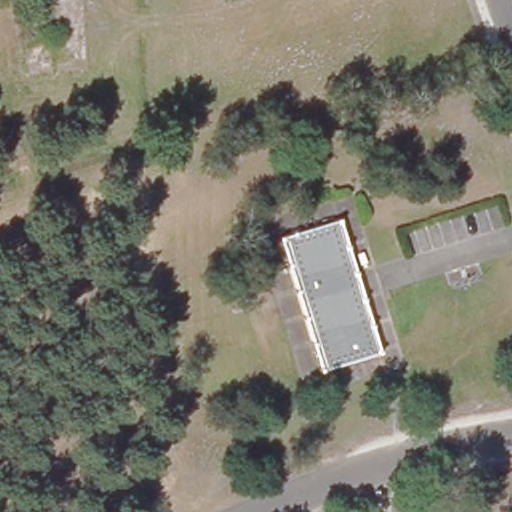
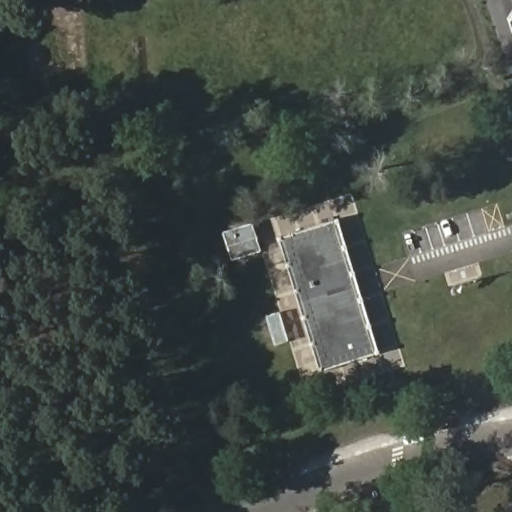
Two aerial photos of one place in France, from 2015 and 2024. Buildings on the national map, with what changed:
unchanged [(377,353),(319,371),(279,239),(337,220),(377,353)]

